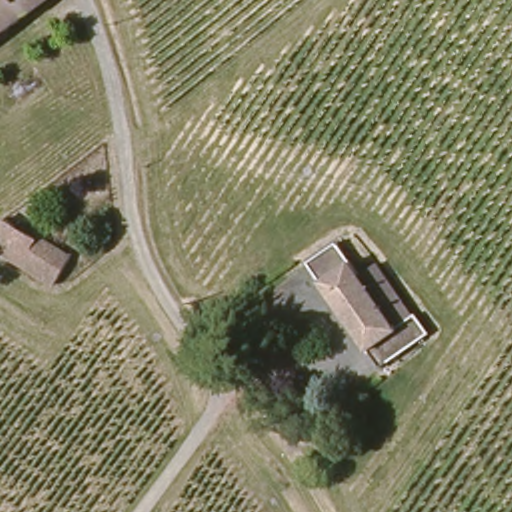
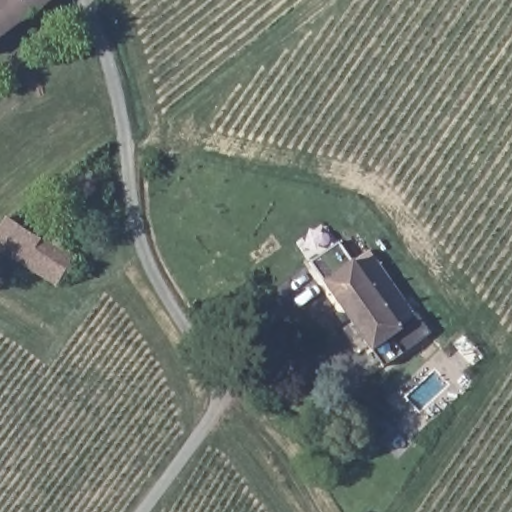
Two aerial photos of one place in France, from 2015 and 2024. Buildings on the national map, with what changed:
unchanged [(0,0),(53,0),(0,36),(0,0)]
unchanged [(75,259),(55,284),(0,244),(0,225),(11,210),(75,259)]
unchanged [(381,366),(307,260),(340,242),(401,328),(418,319),(428,337),(381,366)]

